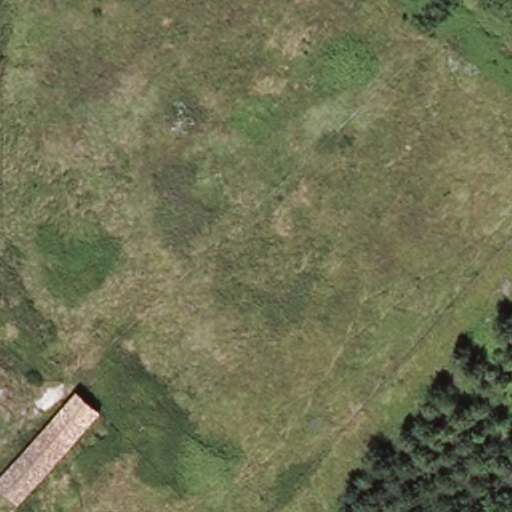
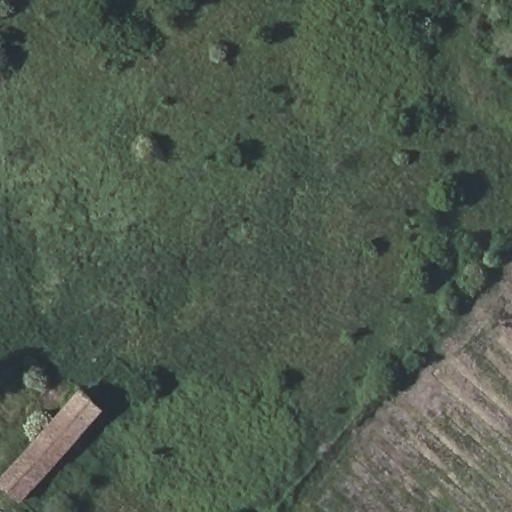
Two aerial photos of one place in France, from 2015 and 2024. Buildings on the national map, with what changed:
unchanged [(25,507),(1,484),(83,393),(108,414),(25,507)]

